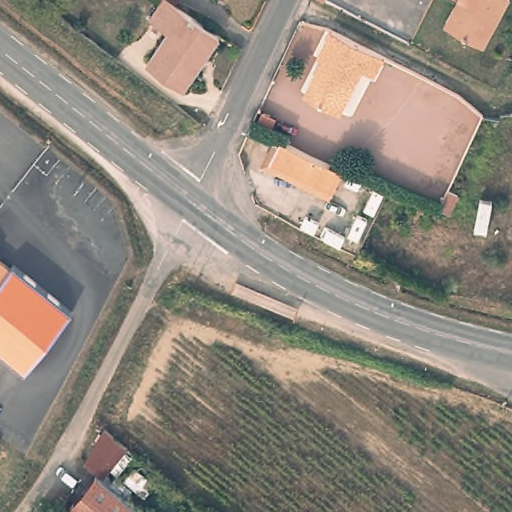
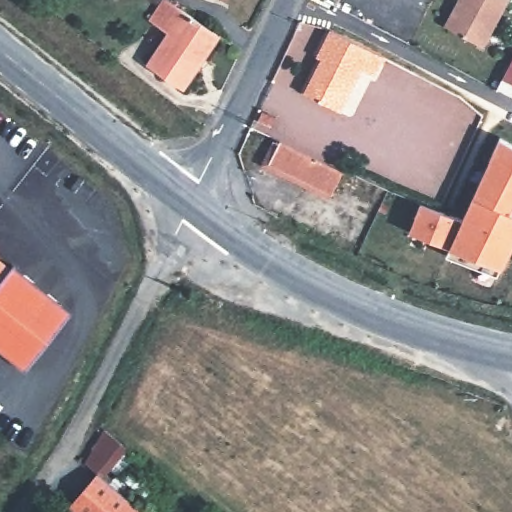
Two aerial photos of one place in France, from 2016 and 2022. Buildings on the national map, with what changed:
unchanged [(186,88),(150,63),(170,33),(151,20),(164,0),(171,0),(221,35),(186,88)]
unchanged [(503,0),(480,42),(453,28),(468,0),(503,0)]
unchanged [(384,51),(372,71),(362,66),(338,106),(304,89),(327,48),(321,45),(333,25),(384,51)]
new [(512,82),(501,76),(512,56),(512,82)]
unchanged [(341,163),(330,186),(267,156),(277,133),(341,163)]
new [(496,275),(445,256),(447,247),(407,232),(418,203),(460,219),(498,134),(512,142),(512,247),(500,269),(496,275)]
unchanged [(7,267),(10,263),(68,310),(21,369),(0,351),(0,261),(7,267)]
unchanged [(104,428),(125,445),(102,477),(95,471),(83,461),(104,428)]
unchanged [(68,503),(95,471),(102,477),(145,512),(79,512),(68,503)]

